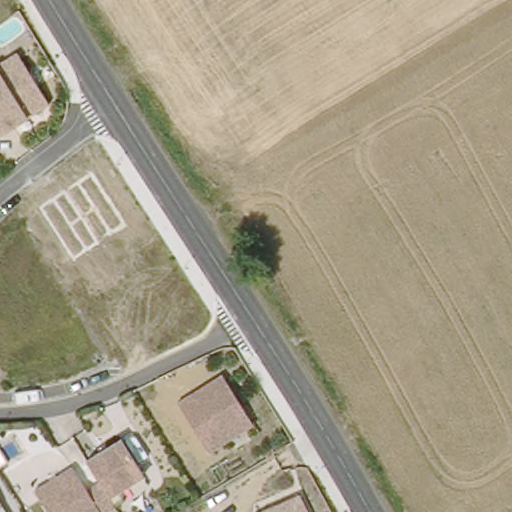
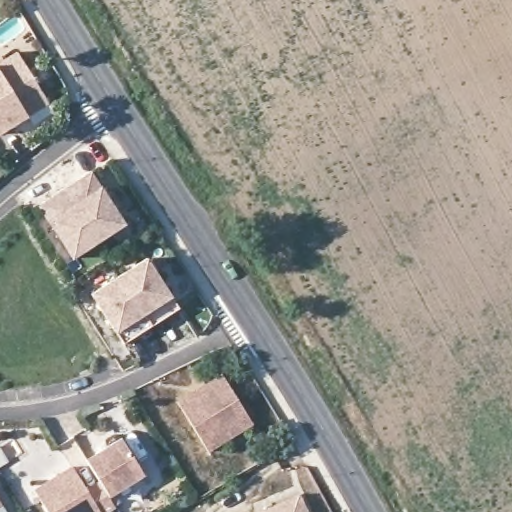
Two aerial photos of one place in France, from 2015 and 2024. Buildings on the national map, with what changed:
unchanged [(50,101),(0,132),(0,60),(17,49),(50,101)]
new [(100,173),(133,225),(80,258),(47,206),(100,173)]
new [(152,264),(180,315),(126,344),(98,294),(152,264)]
unchanged [(208,384),(225,374),(256,424),(211,451),(180,401),(193,393),(208,384)]
unchanged [(123,437),(146,474),(111,495),(102,481),(88,459),(123,437)]
unchanged [(111,495),(118,506),(110,512),(51,512),(37,489),(75,465),(90,488),(102,481),(111,495)]
unchanged [(311,512),(262,512),(267,510),(304,494),(311,512)]

